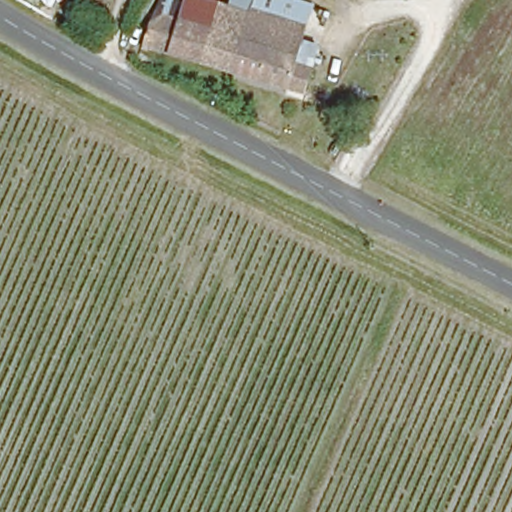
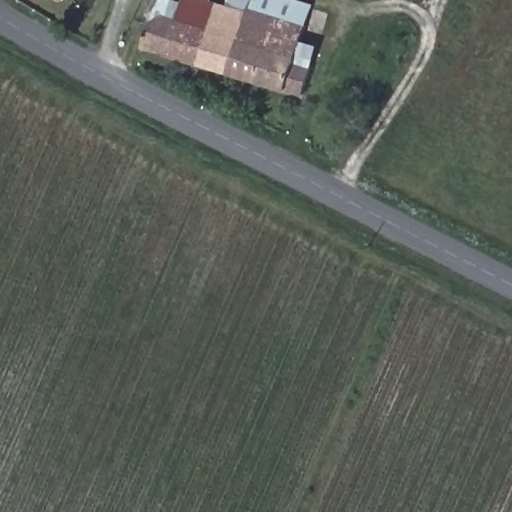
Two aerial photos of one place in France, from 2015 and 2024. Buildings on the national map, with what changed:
unchanged [(164,58),(141,53),(148,30),(162,20),(174,23),(184,0),(251,16),(232,78),(164,58)]
unchanged [(256,0),(272,0),(282,3),(312,12),(307,28),(293,67),(312,74),(304,99),(232,78),(251,16),(256,0)]

